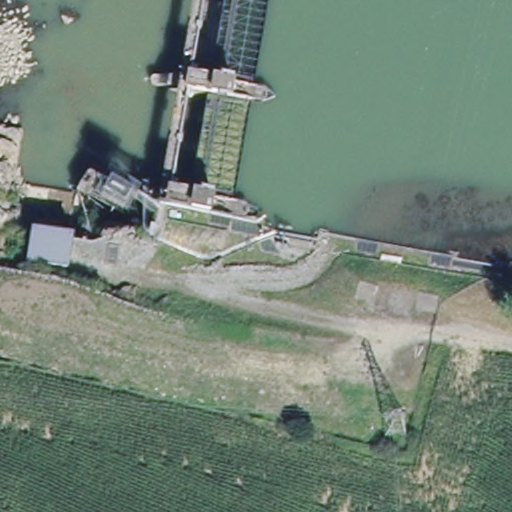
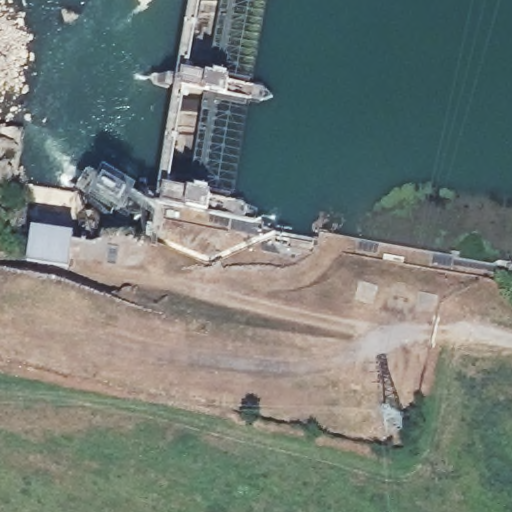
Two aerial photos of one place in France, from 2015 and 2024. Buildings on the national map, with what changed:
unchanged [(76,231),(71,266),(30,259),(35,224),(76,231)]

